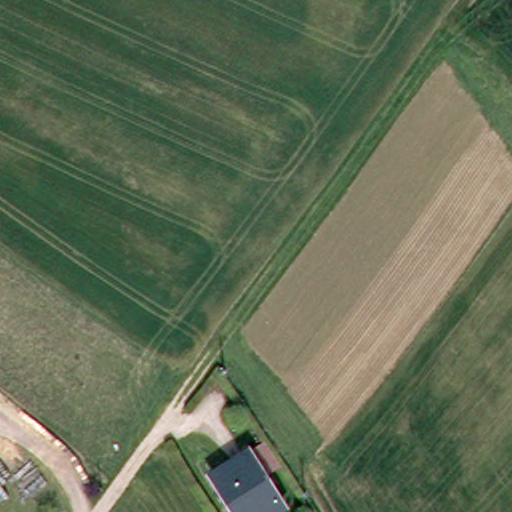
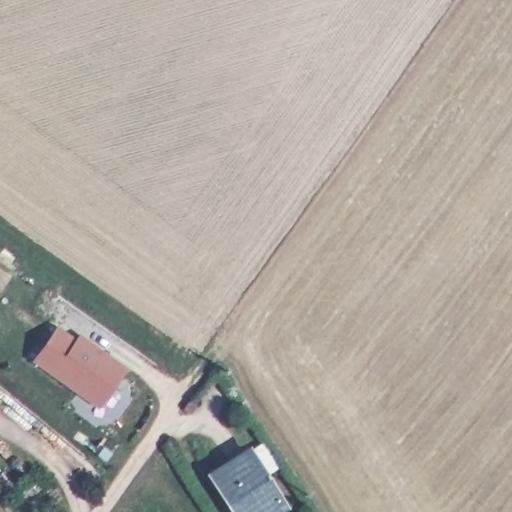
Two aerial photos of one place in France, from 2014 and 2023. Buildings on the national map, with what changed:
new [(76,338),(80,334),(127,368),(98,410),(30,362),(57,324),(76,338)]
unchanged [(252,452),(287,501),(270,512),(240,512),(215,477),(252,452)]

